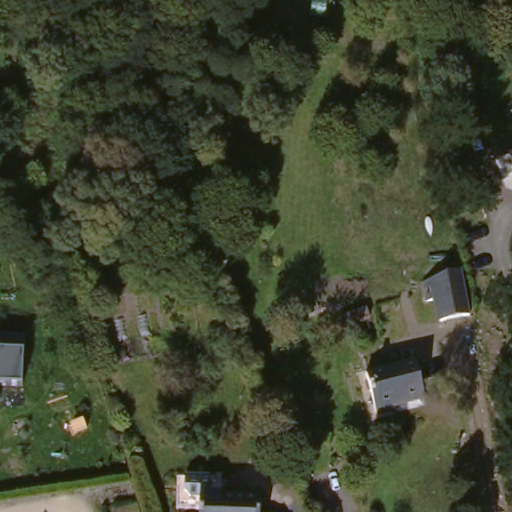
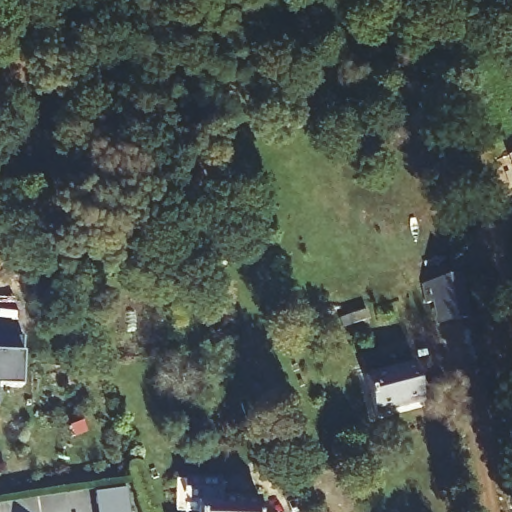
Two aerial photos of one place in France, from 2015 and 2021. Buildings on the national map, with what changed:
unchanged [(448,43),(475,39),(482,78),(455,83),(448,43)]
unchanged [(512,158),(512,175),(506,161),(512,158)]
unchanged [(467,329),(438,332),(435,316),(426,316),(423,292),(458,282),(467,329)]
unchanged [(25,334),(24,384),(0,383),(0,333),(25,334)]
unchanged [(421,402),(390,409),(391,418),(377,420),(367,377),(413,367),(421,402)]
new [(93,487),(125,481),(130,511),(130,512),(97,512),(93,487)]
unchanged [(180,484),(222,489),(220,508),(255,512),(177,512),(180,484)]

